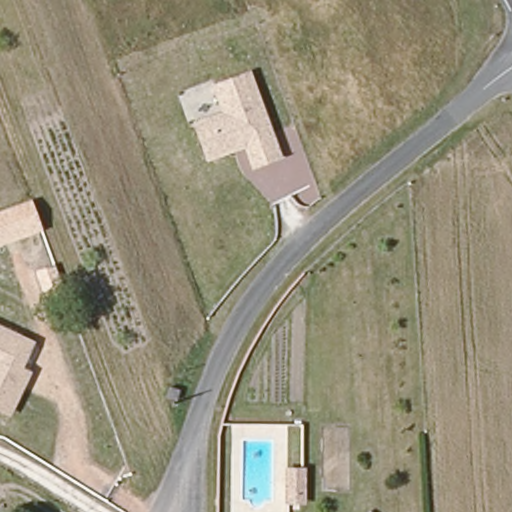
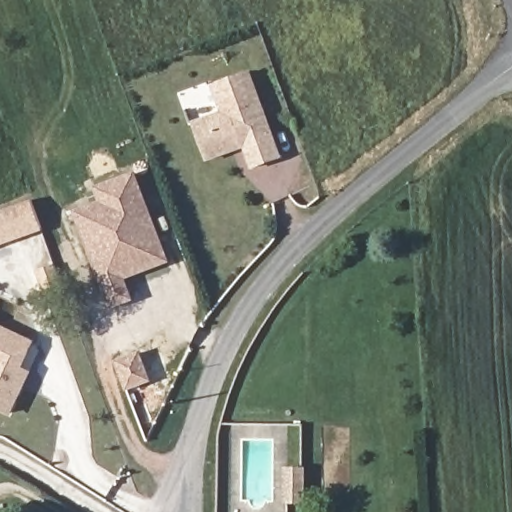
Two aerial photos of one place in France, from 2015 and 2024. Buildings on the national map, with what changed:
unchanged [(224,113),(215,85),(252,73),(281,158),(253,167),(246,146),(213,157),(208,159),(196,121),(199,120),(224,113)]
new [(156,258),(134,198),(74,220),(71,212),(98,203),(93,190),(131,176),(163,265),(120,281),(116,272),(156,258)]
new [(134,198),(156,258),(116,272),(120,281),(126,300),(106,308),(74,220),(134,198)]
new [(0,212),(31,201),(42,231),(0,247),(0,212)]
unchanged [(23,369),(31,373),(10,416),(0,411),(0,326),(35,342),(23,369)]
new [(134,356),(144,384),(121,392),(111,364),(134,356)]
unchanged [(306,466),(306,502),(284,503),(286,466),(306,466)]
demolished [(8,503),(0,507),(0,478),(1,477),(8,503)]

